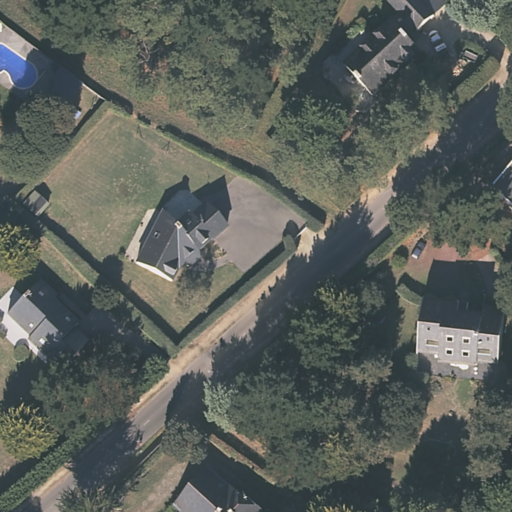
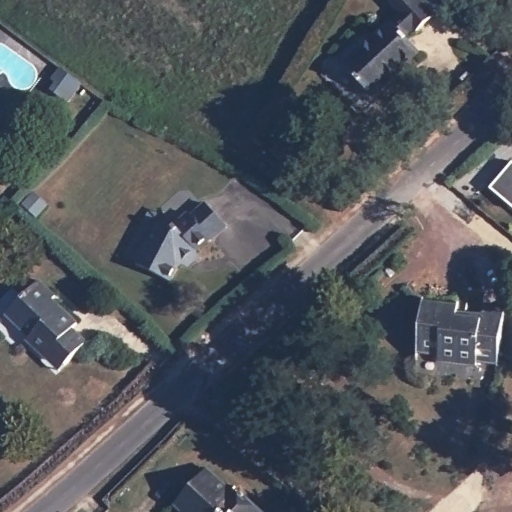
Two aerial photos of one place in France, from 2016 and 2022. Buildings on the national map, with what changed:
unchanged [(412,36),(426,52),(378,97),(350,66),(396,22),(398,24),(406,16),(394,3),(397,0),(446,0),(451,6),(440,16),(427,28),(424,25),(412,36)]
unchanged [(512,166),(512,204),(492,188),(512,166)]
unchanged [(188,257),(184,254),(178,259),(171,272),(137,256),(156,219),(162,206),(172,216),(176,220),(192,207),(194,209),(209,197),(229,219),(213,232),(211,231),(197,242),(200,246),(188,257)]
unchanged [(57,296),(53,300),(78,324),(73,329),(87,342),(60,370),(29,341),(31,337),(8,316),(24,297),(40,281),(57,296)]
unchanged [(468,304),(467,312),(482,314),(483,306),(508,309),(503,351),(502,364),(482,362),(481,366),(443,361),(444,354),(422,352),(421,351),(427,299),(468,304)]
unchanged [(233,483),(235,480),(253,496),(254,494),(272,509),(269,512),(183,512),(188,506),(181,499),(212,465),(233,483)]

